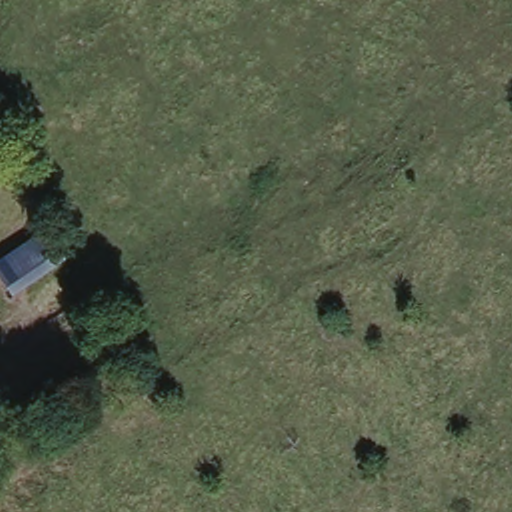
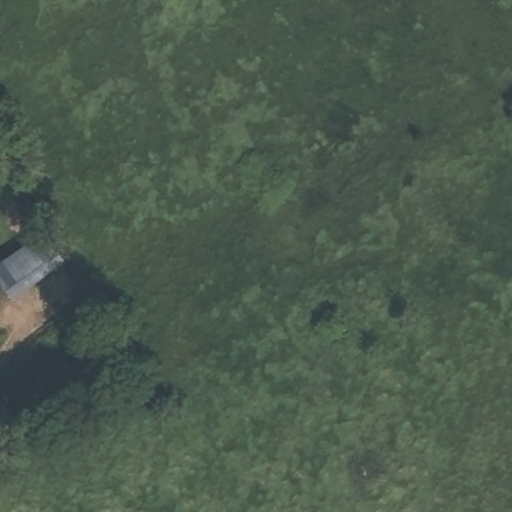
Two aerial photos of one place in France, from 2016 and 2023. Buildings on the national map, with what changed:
unchanged [(0,280),(0,260),(50,227),(72,260),(12,298),(0,280)]

